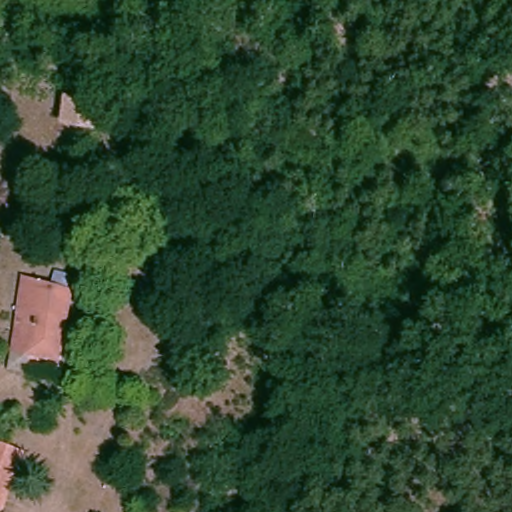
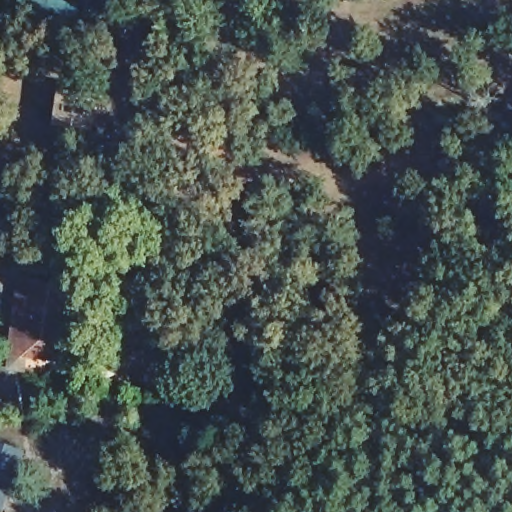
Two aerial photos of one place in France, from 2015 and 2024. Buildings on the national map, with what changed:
unchanged [(64,94),(96,100),(92,125),(60,120),(64,94)]
unchanged [(10,382),(24,288),(68,301),(71,302),(60,376),(48,374),(45,387),(10,382)]
unchanged [(0,493),(0,436),(24,446),(5,495),(0,493)]

